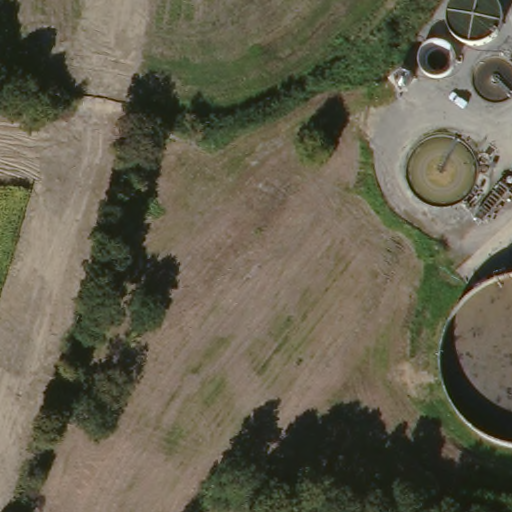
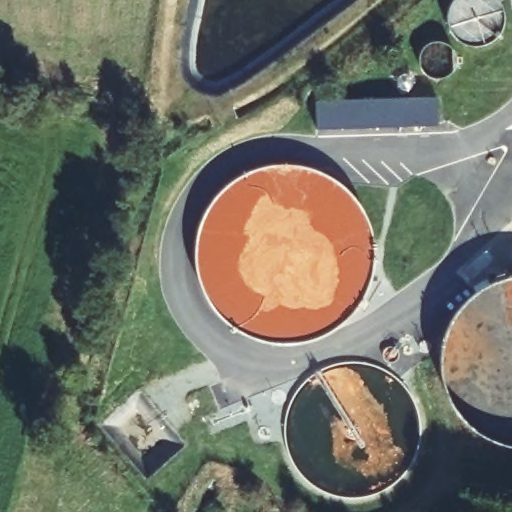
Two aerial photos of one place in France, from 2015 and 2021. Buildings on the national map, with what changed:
new [(316,99),(437,99),(437,126),(317,130),(316,99)]

